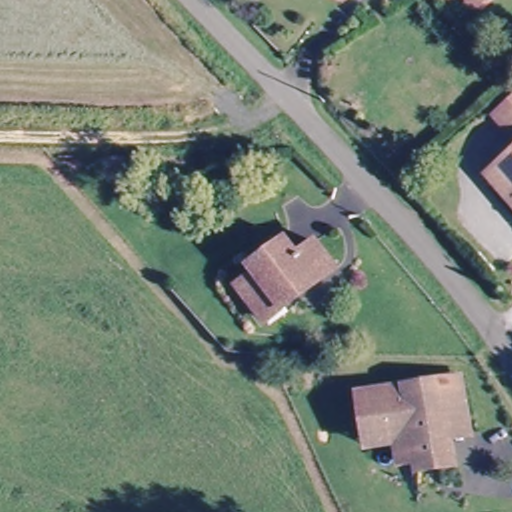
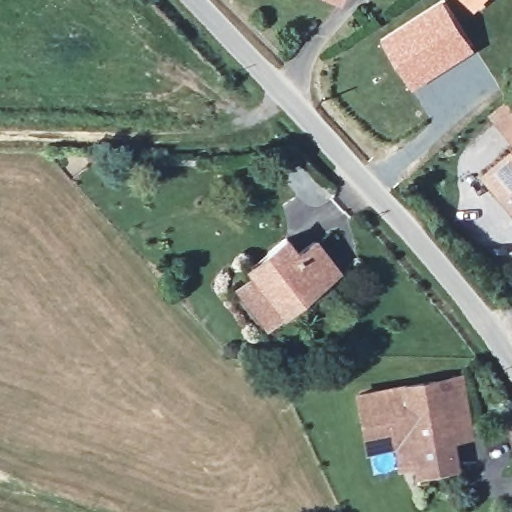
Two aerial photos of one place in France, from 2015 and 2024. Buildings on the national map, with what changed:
new [(444,0),(477,48),(415,87),(382,39),(443,0),(444,0)]
unchanged [(481,0),(476,5),(471,0),(481,0)]
unchanged [(512,108),(512,131),(500,118),(512,108)]
unchanged [(512,162),(512,196),(495,177),(512,162)]
unchanged [(252,316),(235,297),(251,287),(244,278),(273,247),(290,266),(303,255),(327,279),(278,319),(264,330),(252,316)]
unchanged [(448,435),(451,462),(423,466),(420,442),(414,415),(364,423),(357,391),(462,377),(466,412),(470,432),(448,435)]
unchanged [(414,415),(420,442),(400,446),(396,433),(366,438),(364,423),(414,415)]

